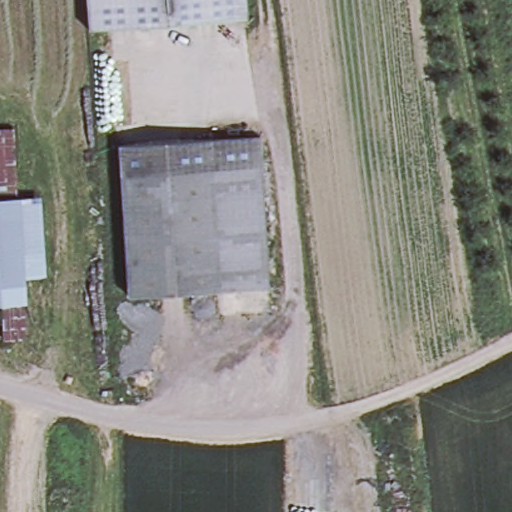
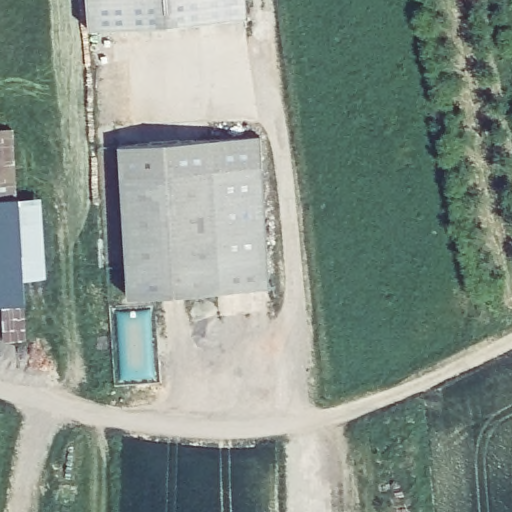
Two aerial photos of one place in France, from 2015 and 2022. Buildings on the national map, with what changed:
unchanged [(92,25),(89,0),(247,0),(248,14),(92,25)]
unchanged [(115,143),(171,139),(207,138),(257,134),(259,164),(210,168),(174,170),(117,174),(115,143)]
unchanged [(210,168),(259,164),(266,285),(222,288),(210,168)]
unchanged [(186,290),(174,170),(210,168),(222,288),(186,290)]
unchanged [(125,294),(117,174),(174,170),(186,290),(125,294)]
unchanged [(25,304),(0,306),(0,200),(20,199),(22,253),(25,304)]
unchanged [(22,253),(20,199),(36,199),(41,199),(44,251),(40,252),(22,253)]

